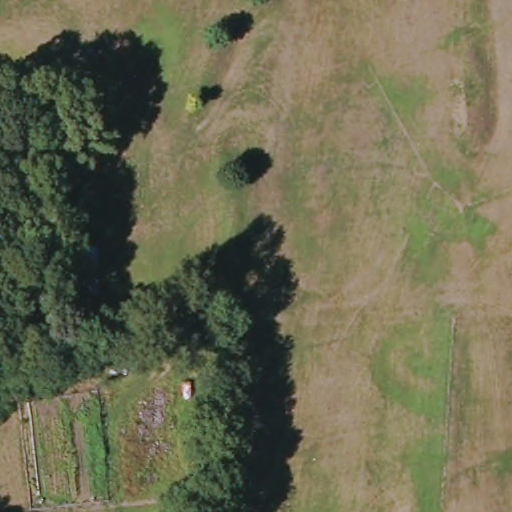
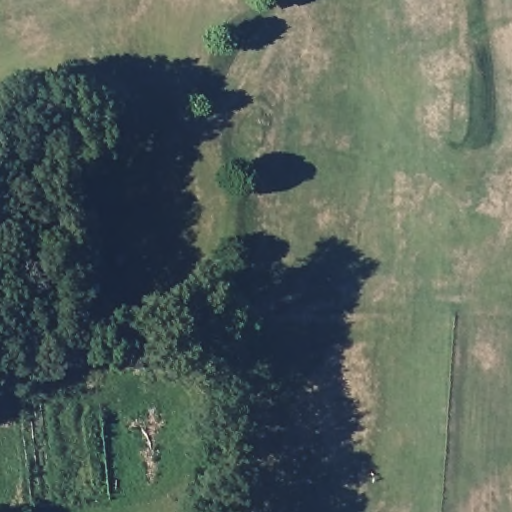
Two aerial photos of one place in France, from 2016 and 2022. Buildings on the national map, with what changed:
unchanged [(69,245),(96,245),(96,307),(70,305),(69,245)]

